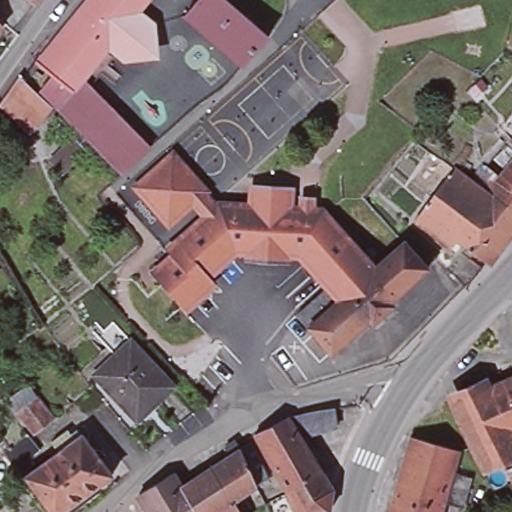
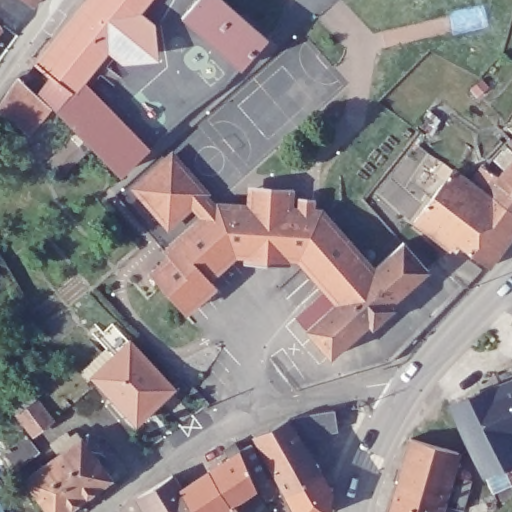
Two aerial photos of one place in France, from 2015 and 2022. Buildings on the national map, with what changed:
unchanged [(28,0),(36,0),(33,4),(28,0)]
unchanged [(59,110),(41,91),(53,76),(36,63),(87,0),(149,0),(138,13),(110,48),(83,81),(150,148),(123,174),(59,110)]
unchanged [(225,0),(271,39),(244,68),(186,17),(200,0),(225,0)]
unchanged [(156,27),(158,47),(146,61),(126,62),(110,48),(138,13),(156,27)]
unchanged [(2,27),(0,29),(0,25),(2,27)]
unchanged [(19,77),(52,108),(29,136),(0,107),(0,102),(19,77)]
unchanged [(85,151),(63,174),(49,160),(72,137),(85,151)]
unchanged [(512,143),(512,151),(508,147),(512,143)]
unchanged [(497,183),(503,176),(491,165),(504,151),(512,157),(512,237),(487,271),(483,268),(453,247),(448,254),(410,227),(443,184),(433,176),(439,167),(449,175),(469,187),(482,172),(497,183)]
unchanged [(171,155),(203,192),(199,196),(164,225),(131,187),(165,159),(171,155)]
unchanged [(178,309),(148,276),(168,257),(163,252),(211,210),(216,205),(246,207),(248,201),(252,195),(256,192),(261,190),(269,189),(275,191),(279,193),(280,195),(251,223),(284,224),(283,246),(284,246),(284,262),(259,262),(243,261),(243,245),(238,239),(201,275),(208,281),(178,309)]
unchanged [(283,197),(285,203),(286,209),(314,210),(299,223),(290,246),(284,246),(283,246),(284,224),(251,223),(280,195),(283,197)]
unchanged [(325,282),(293,246),(290,246),(299,223),(314,210),(316,208),(371,270),(363,277),(349,261),(328,279),(325,282)]
unchanged [(369,325),(366,322),(328,356),(293,316),(323,288),(334,302),(342,295),(328,279),(349,261),(363,277),(371,270),(401,242),(424,269),(387,302),(391,306),(369,325)]
unchanged [(479,273),(463,292),(443,273),(458,257),(479,273)]
unchanged [(131,342),(173,387),(136,422),(93,377),(131,342)]
unchanged [(30,377),(46,400),(27,415),(10,392),(30,377)]
unchanged [(512,434),(510,435),(506,437),(485,388),(512,377),(512,434)]
unchanged [(449,404),(485,388),(506,437),(510,435),(512,439),(512,461),(480,475),(468,452),(449,404)]
unchanged [(309,412),(333,409),(336,428),(301,438),(321,473),(284,493),(253,435),(289,418),(309,412)]
unchanged [(23,416),(36,432),(8,451),(7,449),(0,439),(0,431),(3,430),(23,416)]
unchanged [(83,443),(88,438),(101,457),(95,461),(111,482),(71,512),(45,512),(24,485),(58,459),(50,450),(68,437),(74,447),(81,442),(83,443)]
unchanged [(459,510),(439,504),(437,512),(386,512),(407,438),(454,451),(448,472),(468,478),(459,510)]
unchanged [(181,489),(230,457),(224,448),(234,442),(240,450),(251,443),(268,480),(256,488),(233,503),(238,512),(193,512),(179,490),(181,489)]
unchanged [(512,483),(507,485),(502,472),(512,468),(512,483)]
unchanged [(284,493),(321,473),(332,490),(330,512),(295,512),(286,495),(284,493)]
unchanged [(172,475),(181,489),(179,490),(193,512),(148,512),(138,495),(172,475)]

